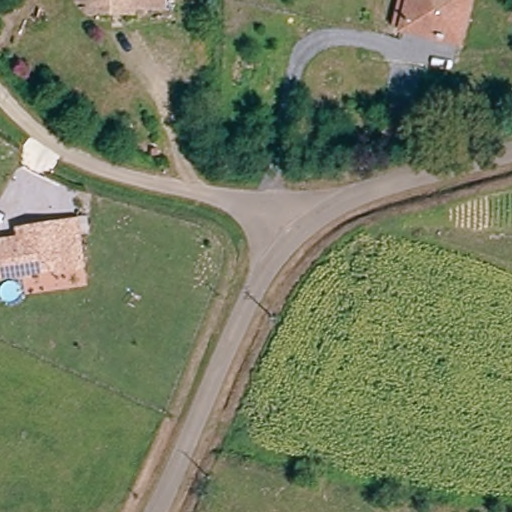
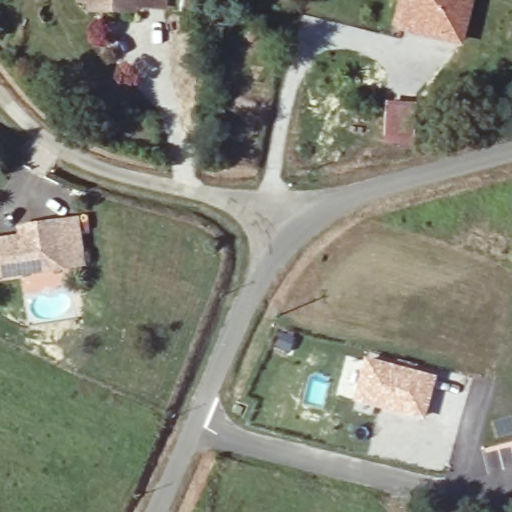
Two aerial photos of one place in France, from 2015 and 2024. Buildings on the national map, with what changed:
unchanged [(106,10),(90,9),(90,1),(74,1),(74,0),(166,0),(165,4),(134,3),(133,12),(106,10)]
unchanged [(462,36),(407,23),(410,5),(397,3),(397,0),(468,0),(462,36)]
unchanged [(414,137),(416,137),(414,145),(384,139),(391,101),(419,107),(414,137)]
unchanged [(0,277),(0,239),(11,238),(12,243),(24,242),(22,227),(60,224),(66,270),(0,277)]
new [(363,357),(436,375),(424,420),(352,402),(363,357)]

